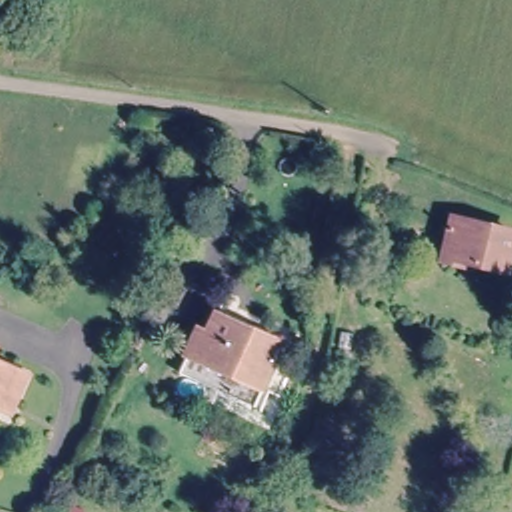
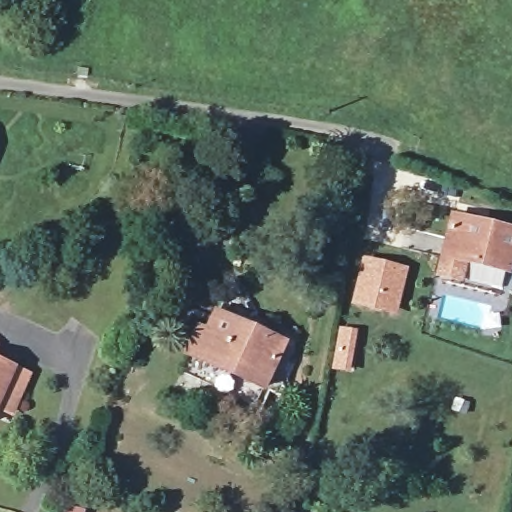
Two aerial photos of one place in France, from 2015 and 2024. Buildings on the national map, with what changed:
unchanged [(444,266),(461,215),(512,226),(512,246),(504,278),(466,266),(464,272),(444,266)]
new [(362,255),(410,267),(398,316),(351,305),(362,255)]
unchanged [(193,351),(208,327),(213,330),(225,310),(285,339),(263,386),(193,351)]
new [(339,327),(358,330),(351,374),(331,370),(339,327)]
unchanged [(1,350),(0,352),(0,349),(1,350)]
unchanged [(256,401),(184,366),(193,351),(263,386),(256,401)]
unchanged [(0,411),(0,363),(33,378),(22,401),(14,417),(0,411)]

